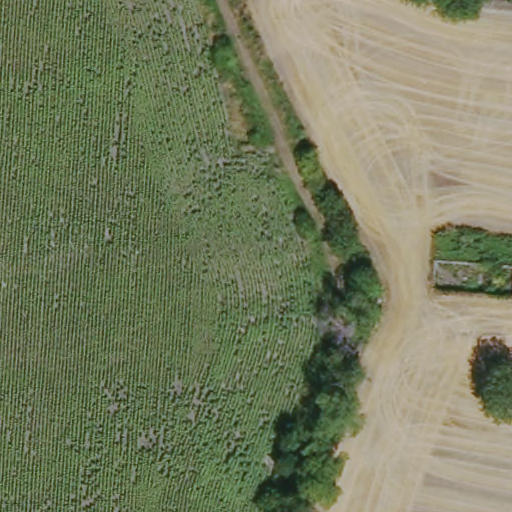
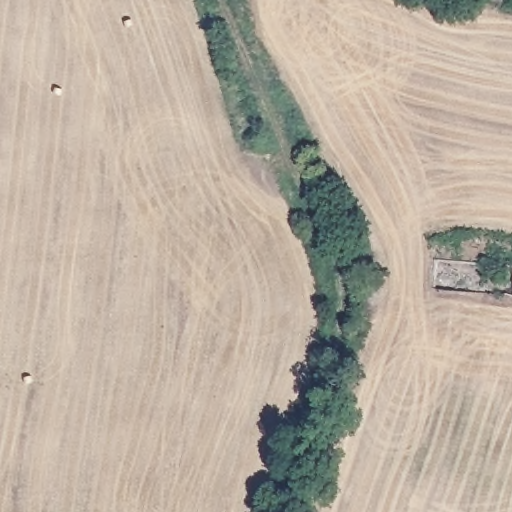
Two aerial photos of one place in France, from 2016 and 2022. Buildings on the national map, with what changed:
unchanged [(512,275),(512,286),(511,286),(512,275)]

